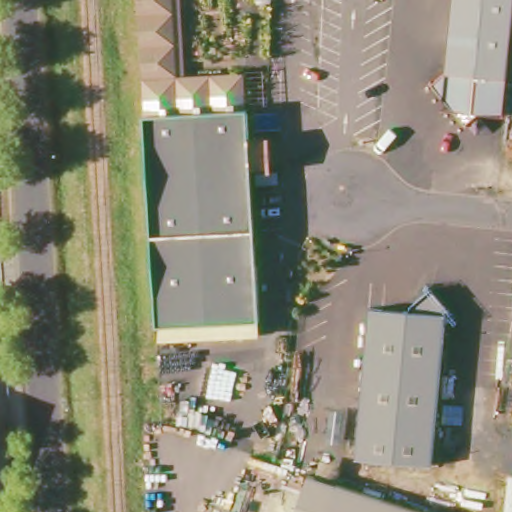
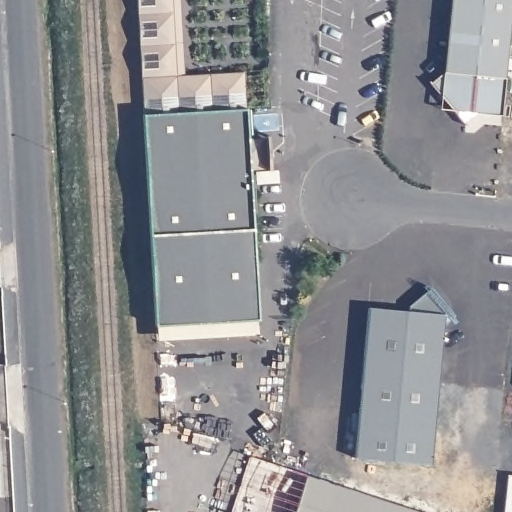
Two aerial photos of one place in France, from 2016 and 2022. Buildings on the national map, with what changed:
unchanged [(180,0),(184,76),(150,78),(146,0),(180,0)]
unchanged [(479,117),(466,127),(432,86),(446,74),(454,0),(512,0),(512,27),(503,120),(479,117)]
unchanged [(150,78),(184,76),(250,73),(254,140),(268,139),(271,170),(256,170),(264,320),(157,326),(143,78),(150,78)]
unchanged [(410,312),(432,291),(456,317),(447,327),(434,470),(355,461),(369,313),(410,317),(410,312)]
unchanged [(264,320),(265,336),(158,343),(157,328),(157,326),(264,320)]
unchanged [(310,473),(426,512),(297,512),(310,473)]
unchanged [(512,478),(512,512),(502,512),(506,477),(512,478)]

